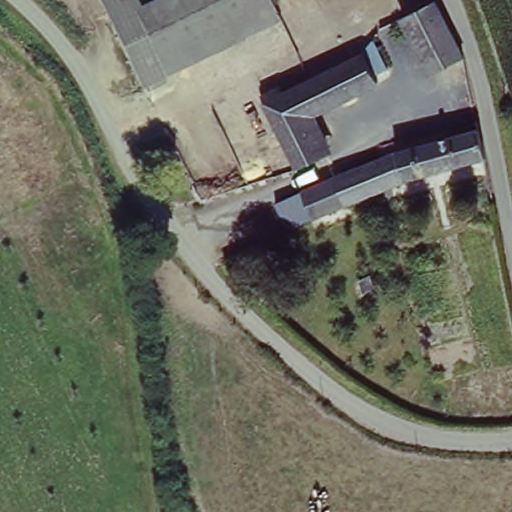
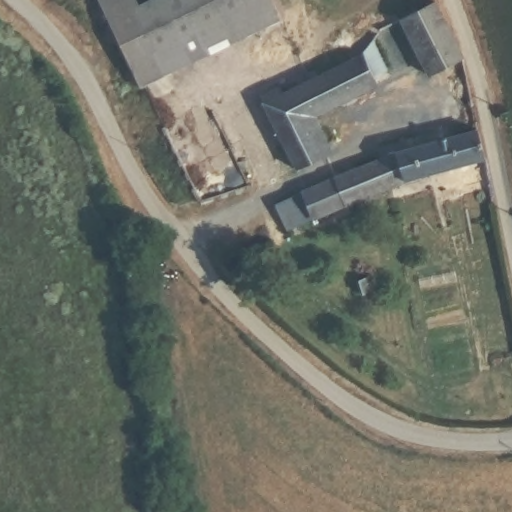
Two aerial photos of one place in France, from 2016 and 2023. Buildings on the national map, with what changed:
unchanged [(137,84),(103,0),(270,0),(281,24),(137,84)]
unchanged [(438,17),(447,40),(451,60),(452,65),(425,76),(397,17),(432,2),(438,17)]
unchanged [(260,91),(277,82),(283,88),(360,53),(370,80),(307,111),(322,154),(287,166),(260,91)]
unchanged [(379,155),(471,128),(477,156),(383,184),(313,217),(298,223),(283,230),(272,201),(301,191),(379,155)]

